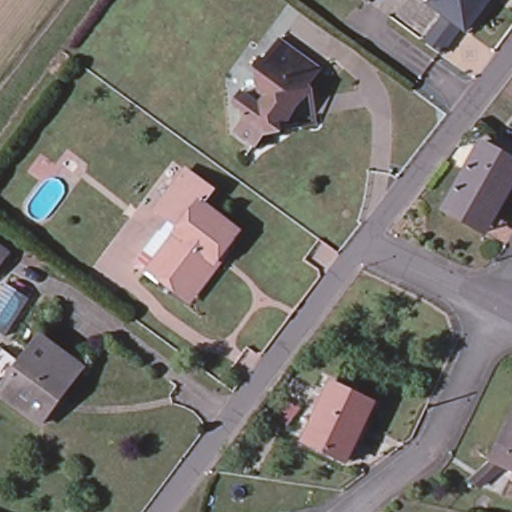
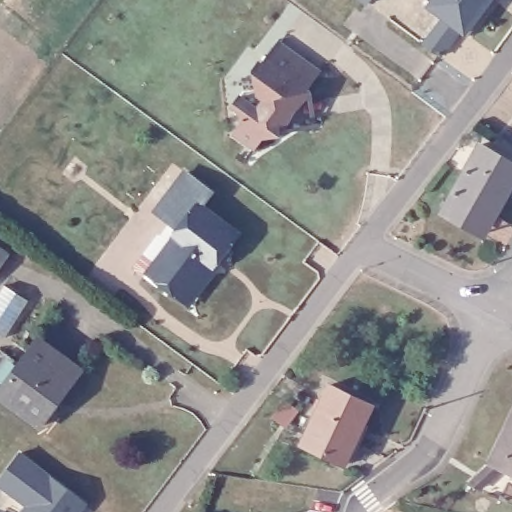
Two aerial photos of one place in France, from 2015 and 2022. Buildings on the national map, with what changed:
unchanged [(434,0),(489,0),(488,2),(493,5),(471,35),(463,29),(431,4),(434,0)]
unchanged [(256,90),(253,71),(259,64),(261,66),(278,45),(316,74),(303,91),(307,94),(286,123),(283,120),(274,123),(275,135),(259,139),(251,149),(233,135),(241,125),(240,114),(232,108),(243,93),(256,90)]
unchanged [(489,207),(479,224),(447,207),(485,142),(512,158),(512,189),(499,212),(489,207)]
unchanged [(189,302),(183,298),(146,269),(178,228),(170,222),(153,209),(157,204),(184,169),(209,189),(199,203),(234,230),(221,248),(228,253),(189,302)]
new [(11,256),(0,271),(0,248),(11,256)]
unchanged [(51,412),(38,430),(0,402),(0,390),(36,342),(73,369),(79,374),(51,412)]
unchanged [(375,405),(348,463),(305,444),(333,386),(375,405)]
unchanged [(512,415),(512,470),(490,459),(512,415)]
new [(88,505),(82,512),(21,512),(24,507),(0,490),(0,479),(19,453),(88,505)]

